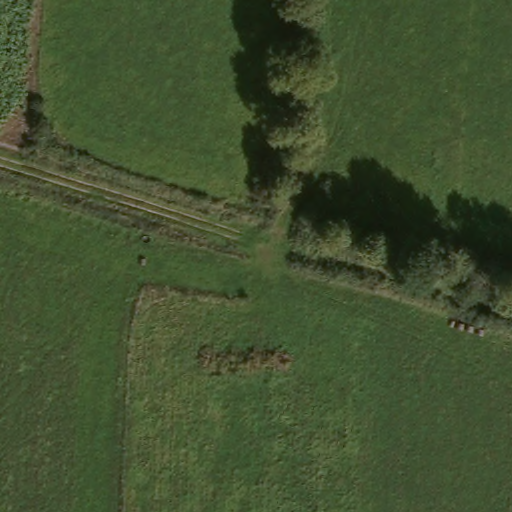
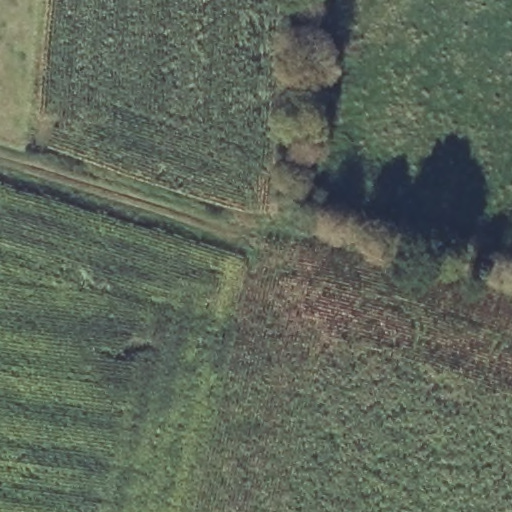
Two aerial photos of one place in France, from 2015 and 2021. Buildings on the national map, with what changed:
[]

